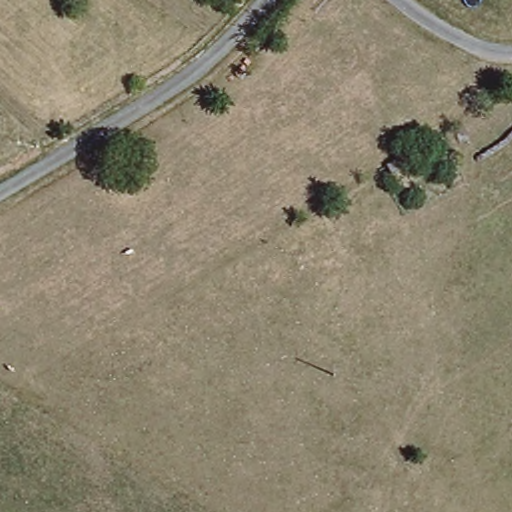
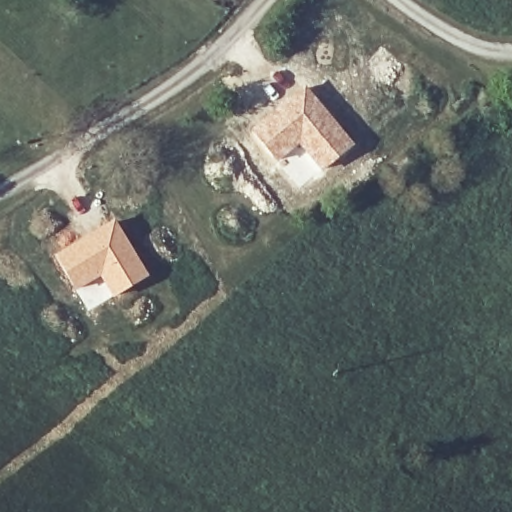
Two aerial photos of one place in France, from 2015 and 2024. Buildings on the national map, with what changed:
new [(305,82),(355,144),(321,172),(298,146),(280,162),(250,127),(305,82)]
unchanged [(388,172),(406,159),(413,169),(396,184),(388,172)]
new [(113,218),(149,276),(89,311),(54,255),(113,218)]

